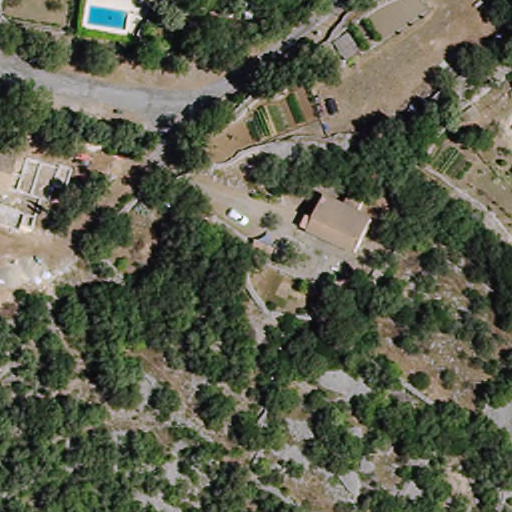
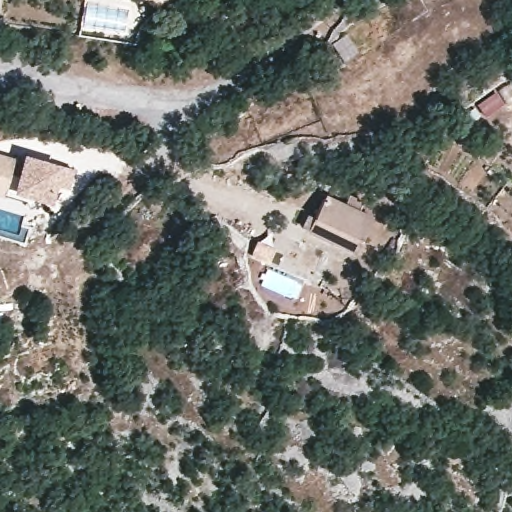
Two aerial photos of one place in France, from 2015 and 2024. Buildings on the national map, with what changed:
demolished [(0,144),(20,156),(11,174),(0,188),(0,144)]
unchanged [(299,161),(295,170),(280,163),(285,153),(299,161)]
new [(70,191),(56,188),(53,206),(42,203),(41,207),(36,206),(28,210),(25,204),(3,198),(0,197),(0,154),(15,158),(10,175),(18,177),(23,156),(75,170),(70,191)]
unchanged [(305,231),(310,219),(321,198),(344,208),(348,198),(361,204),(357,214),(371,221),(361,242),(355,254),(305,231)]

